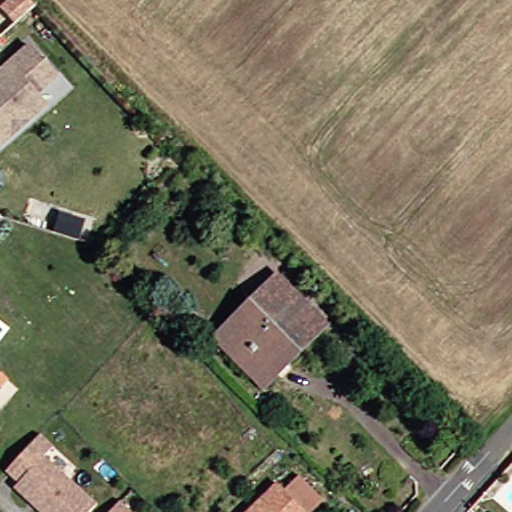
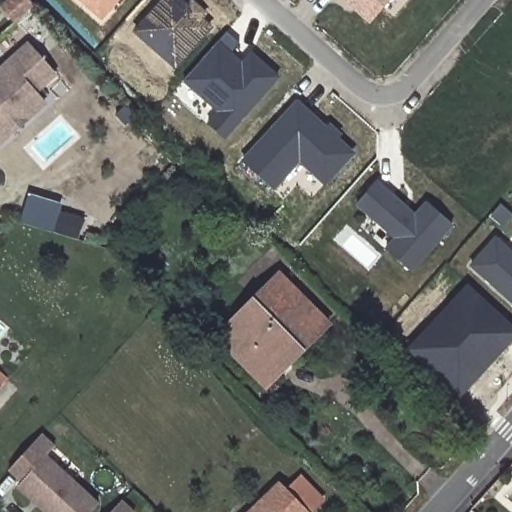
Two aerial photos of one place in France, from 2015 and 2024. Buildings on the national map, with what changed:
new [(30,0),(35,6),(14,25),(1,9),(10,0),(30,0)]
new [(120,0),(101,20),(79,0),(120,0)]
new [(162,0),(183,0),(188,5),(192,0),(208,14),(203,20),(213,27),(175,70),(132,32),(162,0)]
new [(345,0),(388,0),(369,21),(345,0)]
new [(207,124),(216,111),(183,82),(227,32),(240,45),(232,53),(242,62),(251,51),(280,77),(225,140),(207,124)]
unchanged [(22,44),(49,75),(29,92),(39,104),(26,115),(0,139),(0,63),(22,44)]
new [(241,160),(297,100),(326,126),(330,122),(343,134),(339,139),(355,154),(325,186),(299,163),(274,190),(241,160)]
new [(426,202),(452,226),(412,271),(385,249),(395,237),(358,205),(378,182),(415,215),(426,202)]
new [(28,194),(62,205),(60,211),(84,219),(78,239),(20,222),(28,194)]
new [(496,239),(512,253),(512,301),(472,265),(496,239)]
unchanged [(260,376),(224,340),(217,333),(253,298),(280,271),(330,321),(303,348),(267,383),(260,376)]
new [(467,283),(512,325),(512,342),(458,400),(406,350),(467,283)]
unchanged [(7,380),(0,388),(0,373),(7,380)]
unchanged [(15,487),(20,482),(7,470),(40,435),(53,447),(45,456),(97,505),(90,512),(42,512),(36,506),(30,501),(15,487)]
unchanged [(277,485),(305,512),(249,512),(277,485)]
unchanged [(120,501),(132,512),(110,512),(120,501)]

